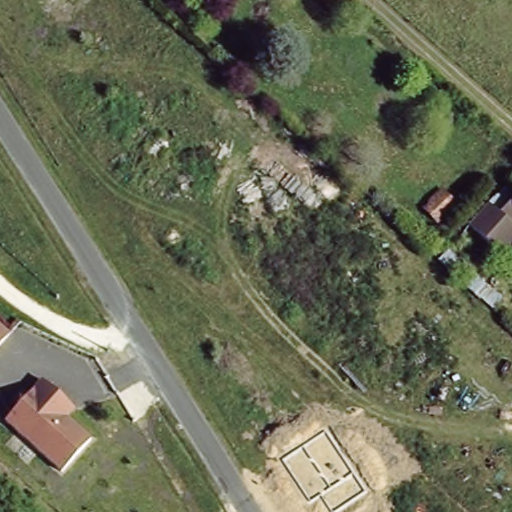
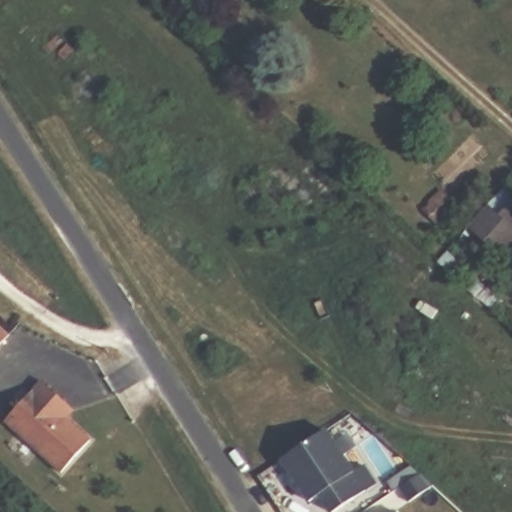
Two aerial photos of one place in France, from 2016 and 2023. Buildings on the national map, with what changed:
unchanged [(483,195),(495,205),(512,185),(512,255),(510,257),(463,216),(465,215),(483,195)]
unchanged [(10,335),(0,346),(0,325),(10,335)]
unchanged [(40,380),(74,411),(67,418),(92,440),(60,474),(5,421),(40,380)]
new [(372,499),(353,512),(335,512),(328,502),(317,509),(288,466),(330,437),(360,480),(370,473),(383,492),(372,499)]

